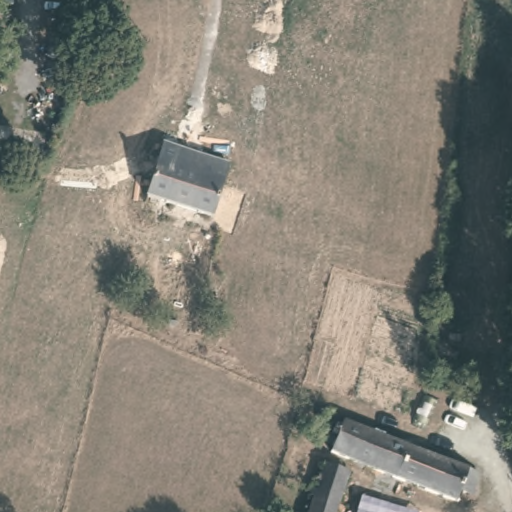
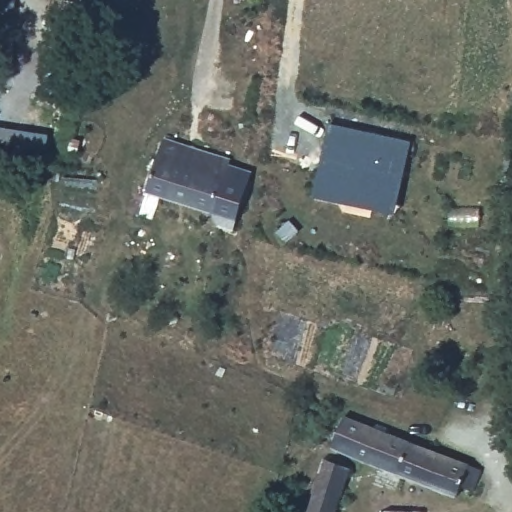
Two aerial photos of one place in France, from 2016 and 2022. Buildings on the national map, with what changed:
new [(396,215),(312,196),(328,122),(411,141),(396,215)]
unchanged [(152,195),(169,142),(183,146),(232,160),(258,171),(240,234),(221,225),(217,214),(152,195)]
unchanged [(479,491),(466,487),(462,497),(337,449),(349,418),(405,439),(425,447),(487,470),(479,491)]
unchanged [(326,473),(347,481),(335,512),(311,512),(326,473)]

